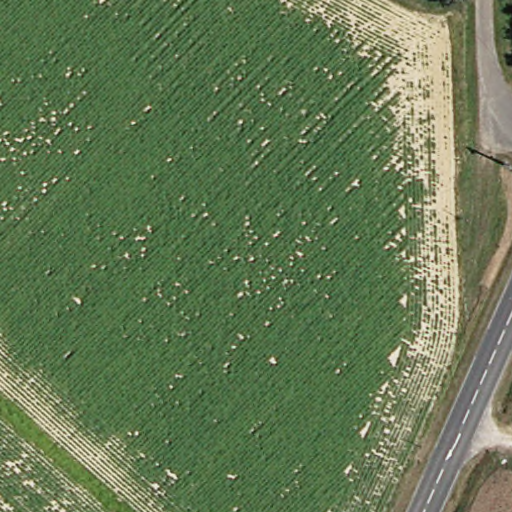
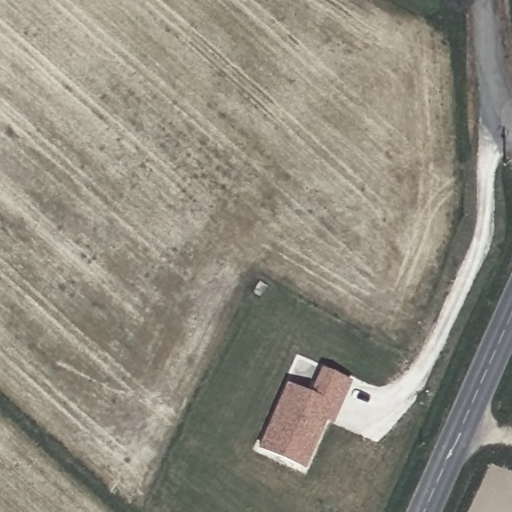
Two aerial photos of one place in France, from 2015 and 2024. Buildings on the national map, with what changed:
new [(290,385),(297,387),(314,395),(325,369),(352,381),(341,408),(335,421),(328,418),(307,467),(263,448),(276,419),(290,385)]

